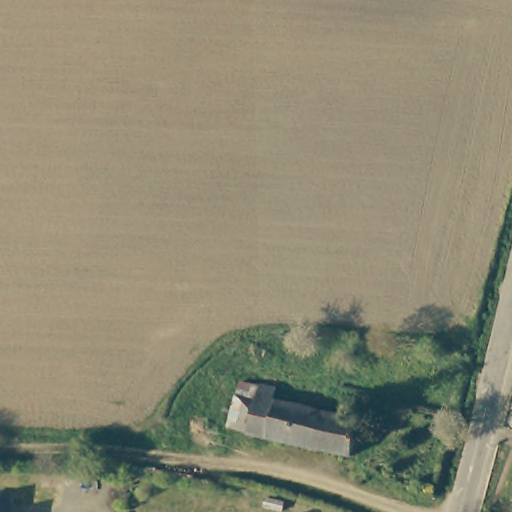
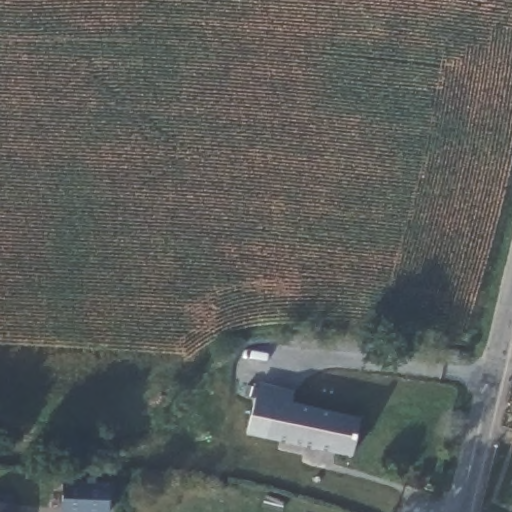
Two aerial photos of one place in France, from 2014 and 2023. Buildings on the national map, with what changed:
unchanged [(230,425),(241,377),(279,382),(280,376),(276,395),(364,415),(354,457),(266,434),(245,428),(230,425)]
new [(112,485),(110,512),(61,512),(64,482),(112,485)]
unchanged [(16,508),(16,512),(0,512),(0,506),(16,508)]

